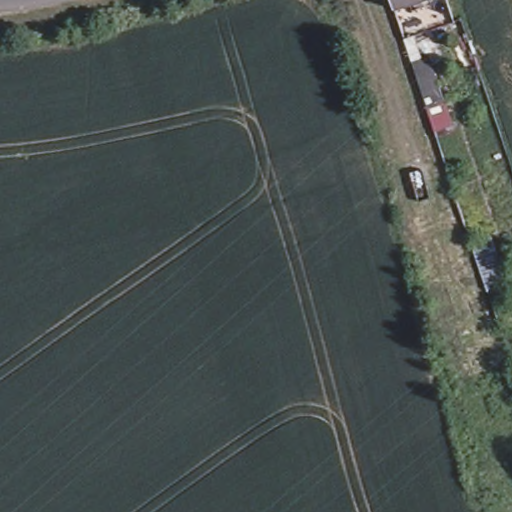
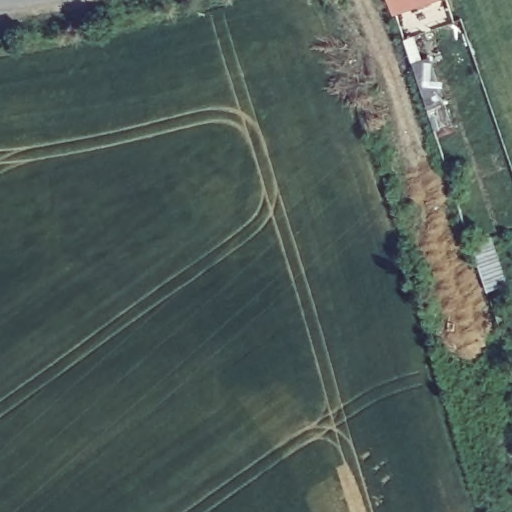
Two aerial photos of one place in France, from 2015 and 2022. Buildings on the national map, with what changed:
unchanged [(389,7),(387,0),(410,0),(389,7)]
unchanged [(465,95),(448,100),(432,55),(424,31),(433,28),(442,52),(450,50),(465,95)]
unchanged [(509,231),(512,241),(512,282),(505,285),(491,237),(509,231)]

